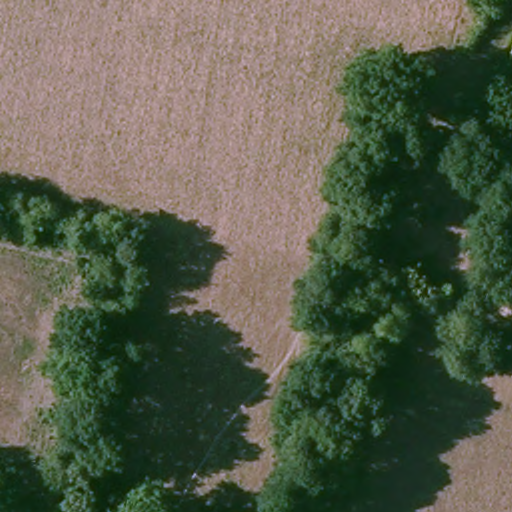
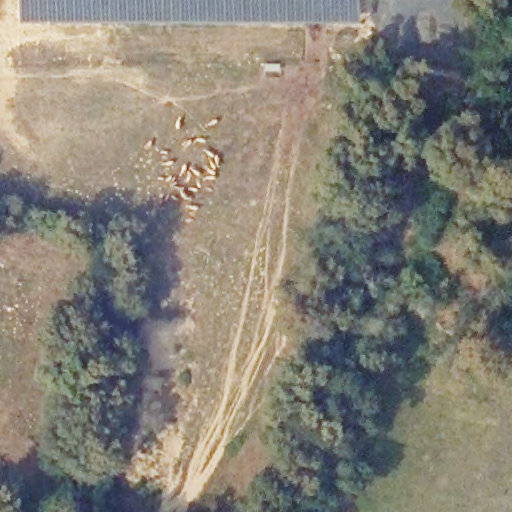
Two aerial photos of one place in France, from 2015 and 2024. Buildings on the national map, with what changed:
new [(20,0),(363,0),(362,24),(292,23),(230,25),(115,23),(20,24),(20,0)]

